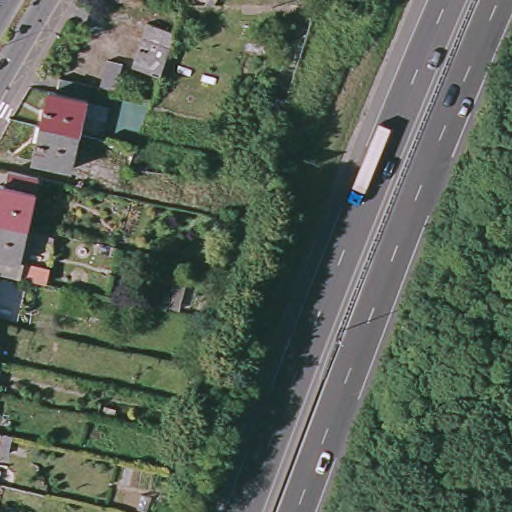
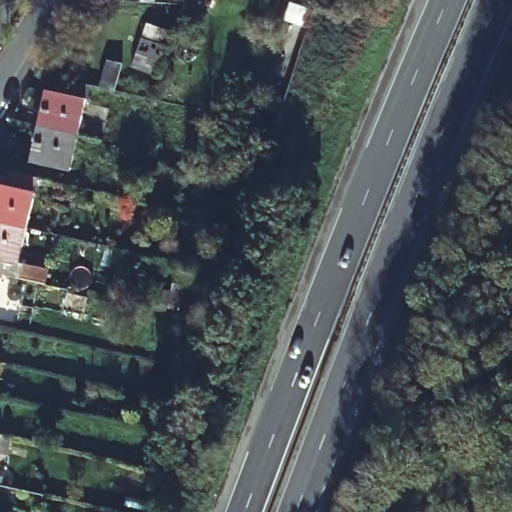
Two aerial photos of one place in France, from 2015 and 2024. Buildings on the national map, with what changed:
unchanged [(124,0),(141,0),(141,1),(124,0)]
unchanged [(136,47),(142,32),(148,17),(176,27),(170,42),(164,57),(160,71),(131,61),(136,47)]
unchanged [(107,60),(121,64),(121,65),(115,90),(101,86),(107,60)]
unchanged [(32,156),(36,136),(32,135),(36,119),(40,120),(44,105),(49,85),(56,85),(59,71),(71,75),(85,78),(90,79),(78,130),(74,148),(70,165),(32,156)]
unchanged [(18,272),(0,268),(0,178),(6,180),(9,165),(39,171),(28,221),(19,258),(23,259),(22,265),(47,270),(45,278),(20,272),(18,272)]
unchanged [(223,210),(236,212),(234,221),(221,218),(223,210)]
unchanged [(68,291),(90,297),(86,313),(64,308),(68,291)]

